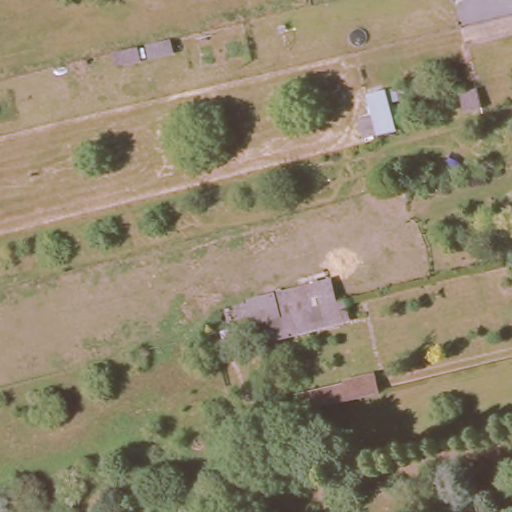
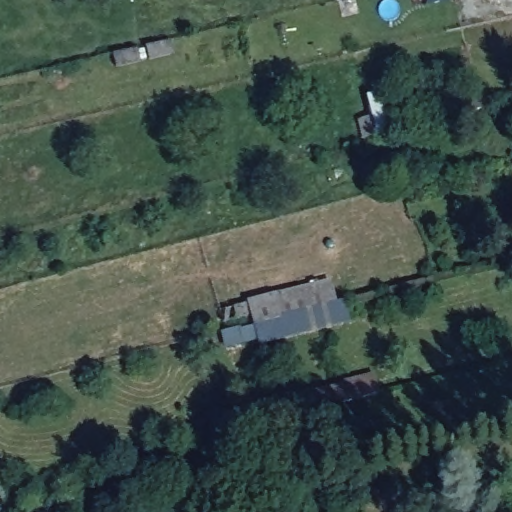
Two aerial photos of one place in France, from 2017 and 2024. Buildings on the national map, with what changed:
unchanged [(455,2),(455,0),(462,0),(455,2)]
unchanged [(358,122),(370,118),(365,96),(396,88),(401,105),(396,107),(400,136),(364,146),(358,122)]
unchanged [(425,123),(421,106),(438,102),(442,119),(425,123)]
unchanged [(340,301),(349,300),(353,318),(259,346),(251,319),(225,325),(221,309),(333,279),(340,301)]
unchanged [(377,397),(301,416),(295,394),(373,374),(377,397)]

